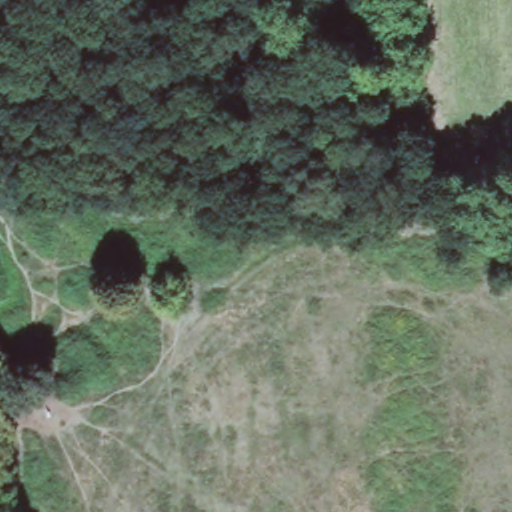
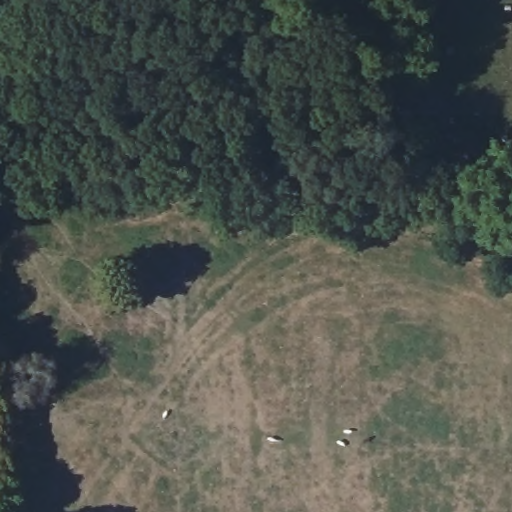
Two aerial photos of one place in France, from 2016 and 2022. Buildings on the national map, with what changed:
unchanged [(57,181),(57,199),(16,199),(17,182),(57,181)]

